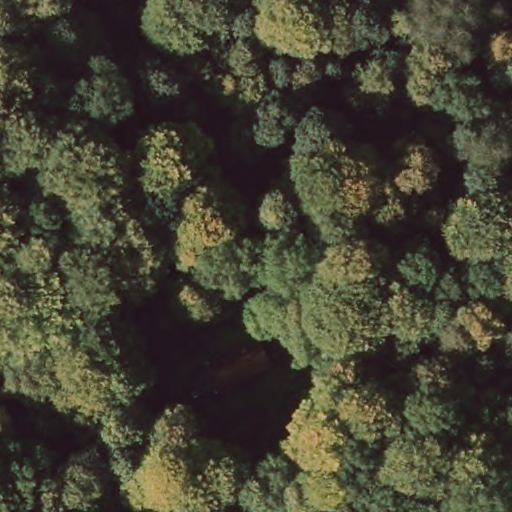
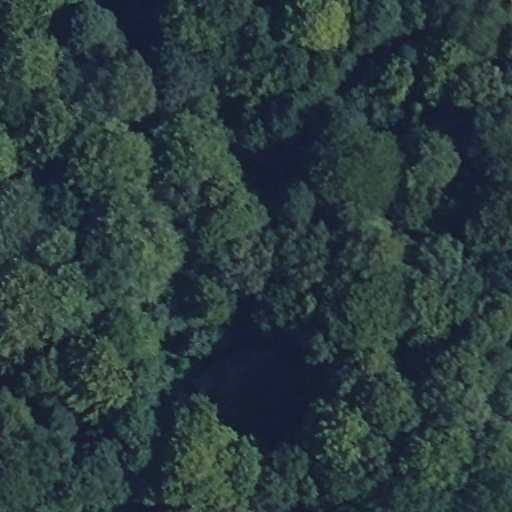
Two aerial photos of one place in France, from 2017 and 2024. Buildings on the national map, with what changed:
unchanged [(181,364),(237,336),(249,358),(193,388),(181,364)]

